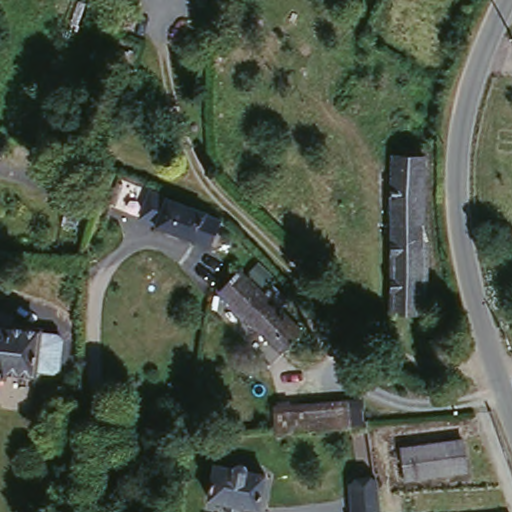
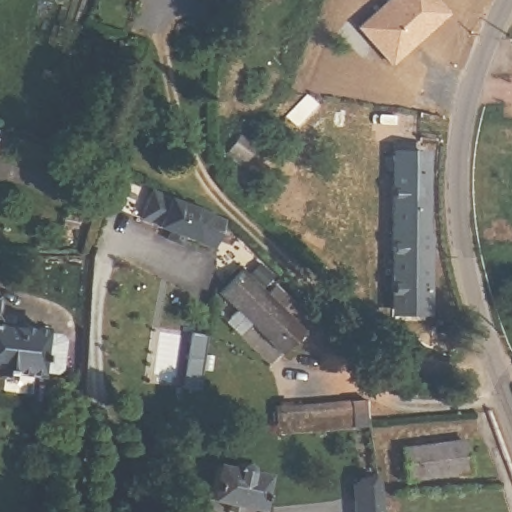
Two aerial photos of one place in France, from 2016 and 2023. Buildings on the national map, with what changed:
new [(433,0),(446,15),(393,60),(364,25),(392,0),(433,0)]
unchanged [(391,286),(387,177),(414,172),(414,177),(417,240),(425,257),(426,287),(391,286)]
unchanged [(217,248),(148,219),(160,194),(230,221),(217,248)]
unchanged [(391,286),(426,287),(426,317),(391,318),(391,286)]
unchanged [(285,381),(204,304),(222,288),(306,358),(285,381)]
unchanged [(0,374),(0,321),(42,325),(37,378),(0,374)]
unchanged [(271,409),(344,400),(349,426),(275,436),(271,409)]
unchanged [(466,474),(406,479),(404,446),(466,441),(466,474)]
unchanged [(261,505),(241,502),(238,507),(228,505),(225,500),(219,498),(210,496),(218,468),(234,471),(238,466),(248,468),(249,473),(265,477),(261,505)]
unchanged [(345,482),(372,481),(373,512),(347,512),(345,482)]

